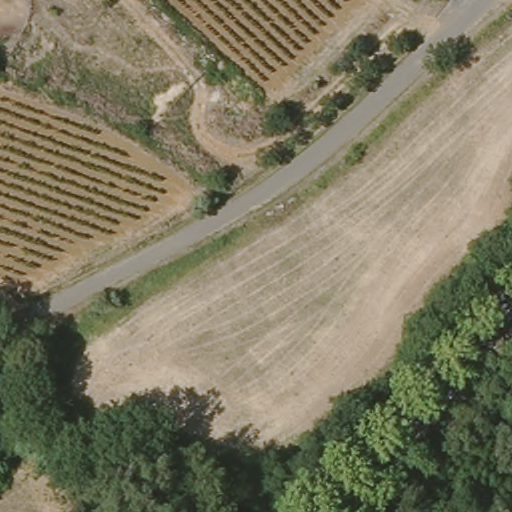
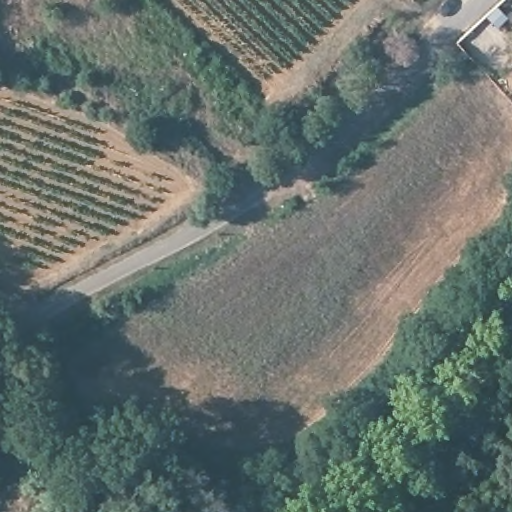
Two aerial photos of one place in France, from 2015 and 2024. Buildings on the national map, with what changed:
[]

